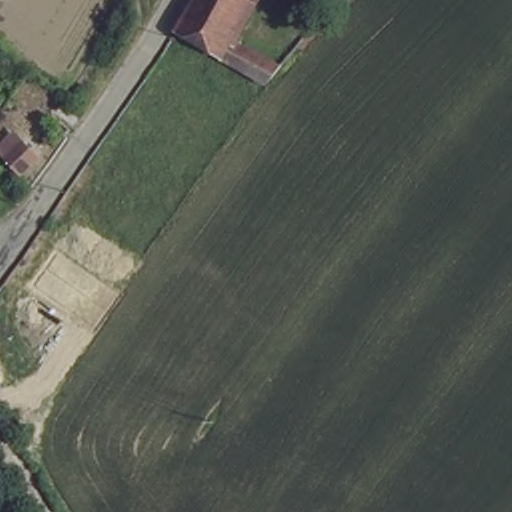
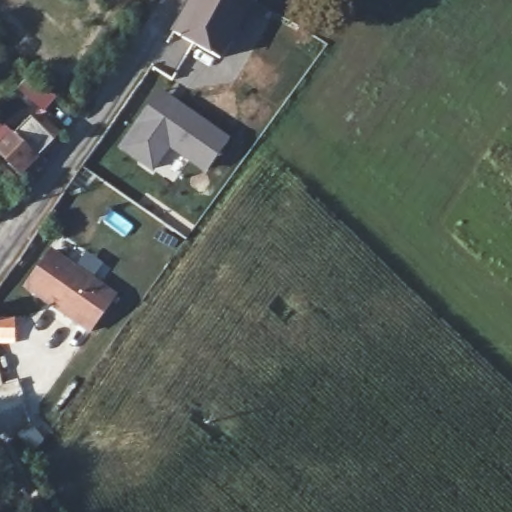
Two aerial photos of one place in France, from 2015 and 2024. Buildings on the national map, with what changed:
unchanged [(223,59),(175,32),(198,0),(249,0),(252,1),(232,41),(223,59)]
unchanged [(249,0),(253,0),(252,1),(249,0)]
demolished [(280,68),(273,76),(267,83),(237,67),(248,50),(280,68)]
new [(204,172),(170,148),(153,173),(116,146),(159,87),(231,137),(204,172)]
unchanged [(1,153),(17,137),(27,146),(32,141),(40,133),(54,145),(46,154),(25,176),(1,153)]
new [(51,247),(117,294),(90,334),(22,286),(51,247)]

